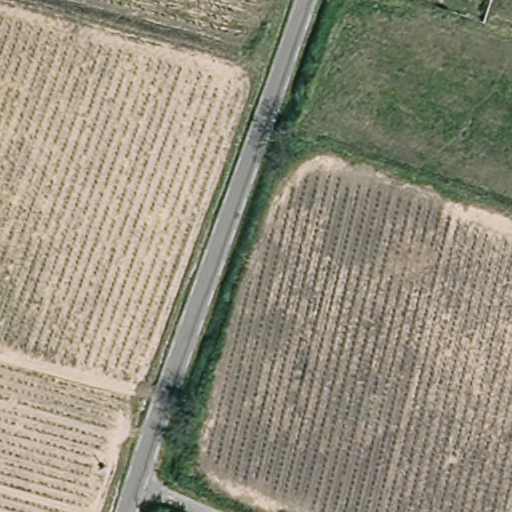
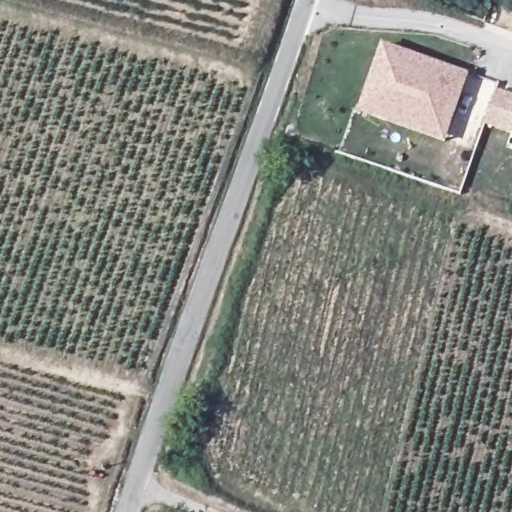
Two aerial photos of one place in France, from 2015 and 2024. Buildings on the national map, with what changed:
new [(470,75),(445,144),(358,114),(382,44),(470,75)]
new [(512,97),(512,150),(504,147),(509,134),(485,125),(497,91),(512,97)]

